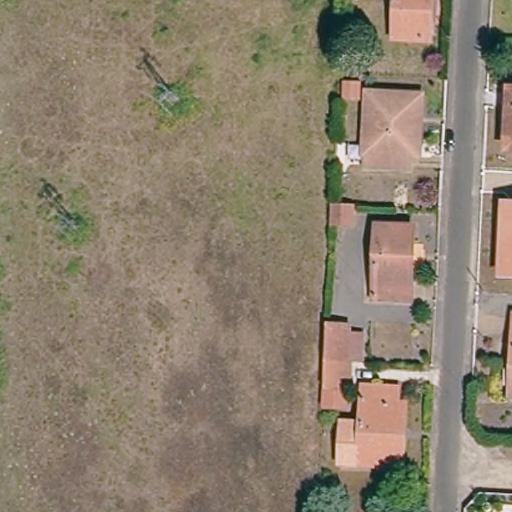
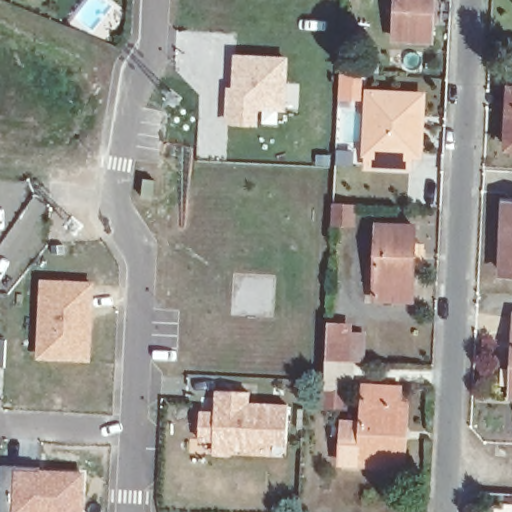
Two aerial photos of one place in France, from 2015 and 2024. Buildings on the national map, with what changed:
unchanged [(425,38),(390,36),(392,0),(427,0),(425,38)]
new [(225,85),(230,85),(232,52),(288,55),(287,109),(279,109),(278,124),(224,123),(225,85)]
unchanged [(355,86),(355,97),(340,97),(341,85),(355,86)]
unchanged [(506,86),(512,86),(512,146),(503,146),(506,86)]
unchanged [(406,157),(406,170),(360,167),(363,94),(417,97),(416,121),(414,158),(406,157)]
new [(154,197),(144,196),(146,177),(156,178),(154,197)]
unchanged [(334,202),(357,203),(357,226),(333,225),(334,202)]
unchanged [(503,272),(507,203),(512,203),(512,273),(503,272)]
unchanged [(413,225),(409,297),(375,296),(378,224),(413,225)]
new [(90,357),(41,355),(45,280),(94,282),(90,357)]
unchanged [(509,394),(512,312),(512,313),(512,395),(509,394)]
unchanged [(323,321),(348,322),(348,330),(363,330),(361,359),(348,359),(346,388),(319,387),(321,358),(323,321)]
new [(7,365),(0,365),(0,338),(8,338),(7,365)]
unchanged [(357,420),(359,380),(393,381),(393,397),(400,397),(398,436),(396,461),(336,457),(338,436),(339,419),(357,420)]
new [(201,437),(202,410),(218,411),(219,389),(251,390),(250,408),(250,402),(262,402),(291,404),(289,441),(262,440),(254,447),(240,447),(232,453),(216,452),(217,438),(232,439),(201,437)]
unchanged [(507,445),(506,454),(496,454),(496,445),(507,445)]
new [(3,463),(19,464),(42,465),(41,470),(19,469),(85,472),(83,512),(0,512),(0,510),(1,501),(3,463)]

